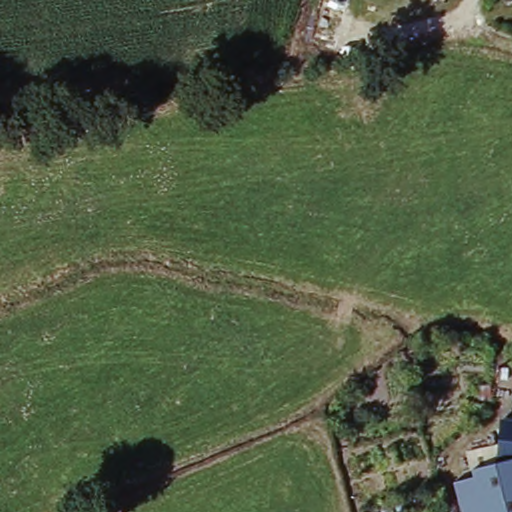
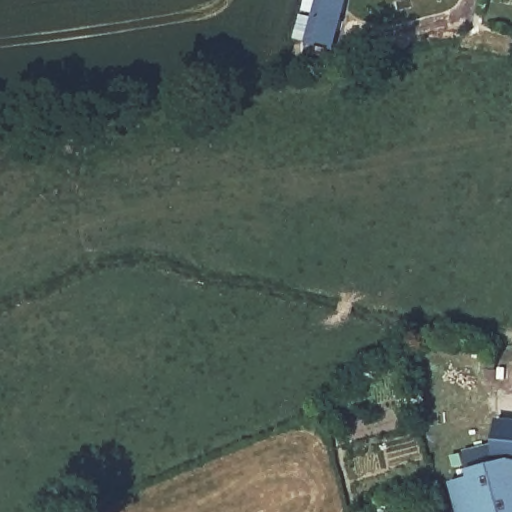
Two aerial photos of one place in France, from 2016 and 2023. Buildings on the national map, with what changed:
new [(335,52),(300,45),(307,13),(314,15),(318,0),(348,0),(335,52)]
unchanged [(474,477),(470,460),(502,452),(504,427),(512,428),(512,512),(461,512),(457,493),(456,490),(476,485),(474,477)]

